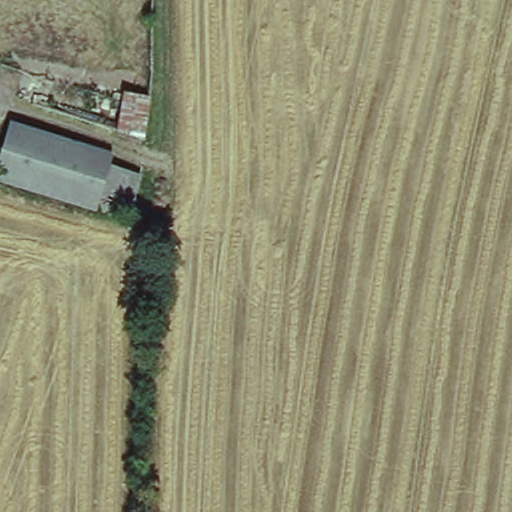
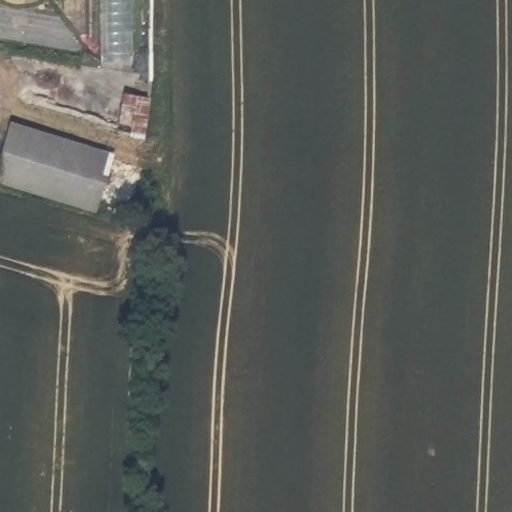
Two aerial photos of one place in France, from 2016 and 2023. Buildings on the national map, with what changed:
new [(102,61),(102,0),(133,0),(135,61),(102,61)]
unchanged [(148,140),(112,130),(115,90),(151,96),(148,140)]
unchanged [(96,193),(92,205),(0,178),(0,132),(4,121),(107,151),(105,162),(135,172),(126,202),(96,193)]

